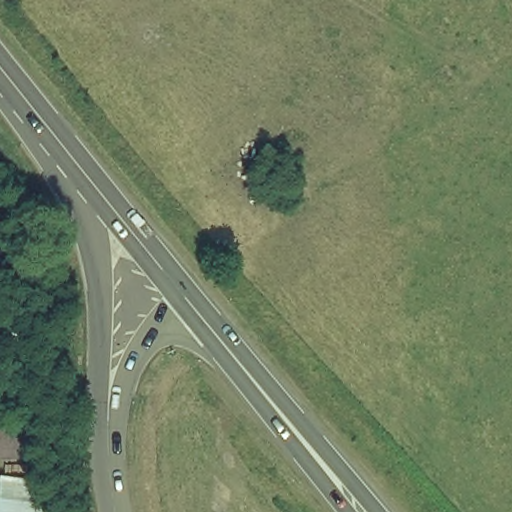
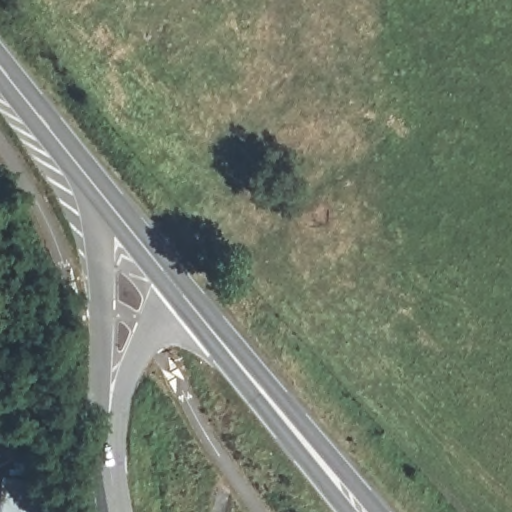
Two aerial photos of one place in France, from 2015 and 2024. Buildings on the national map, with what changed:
unchanged [(40,462),(0,466),(0,424),(35,420),(40,462)]
unchanged [(55,490),(59,512),(2,512),(5,482),(55,490)]

